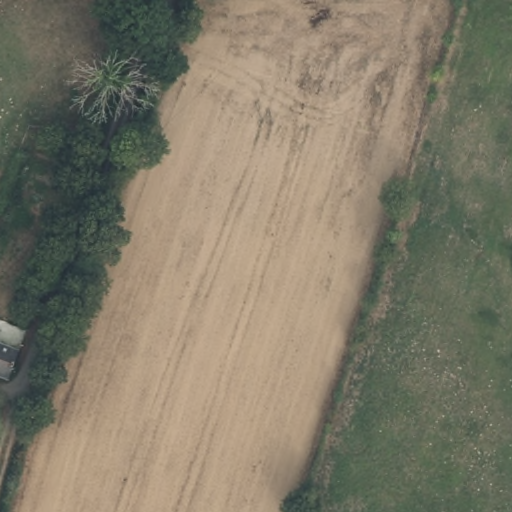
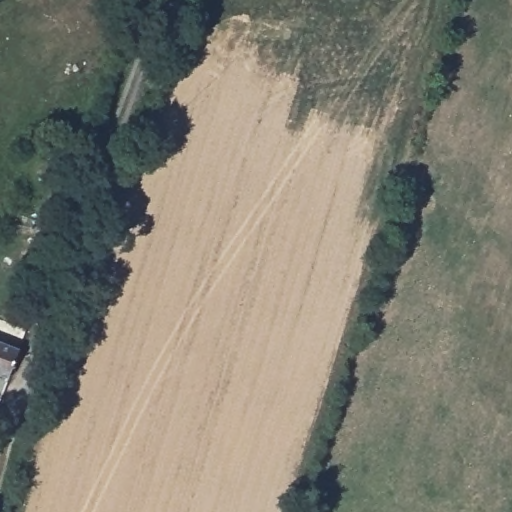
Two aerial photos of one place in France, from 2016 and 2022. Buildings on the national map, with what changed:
unchanged [(0,369),(0,337),(17,344),(7,372),(0,369)]

